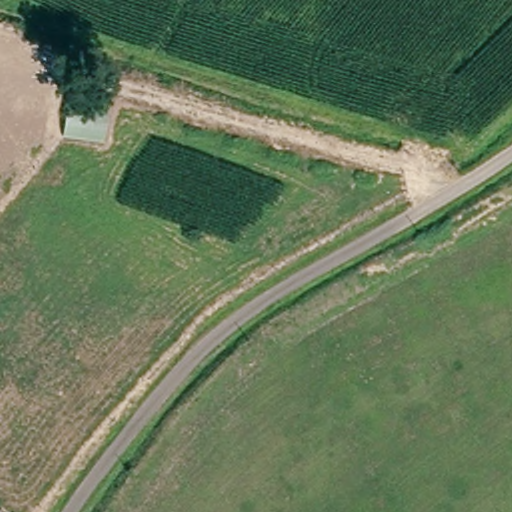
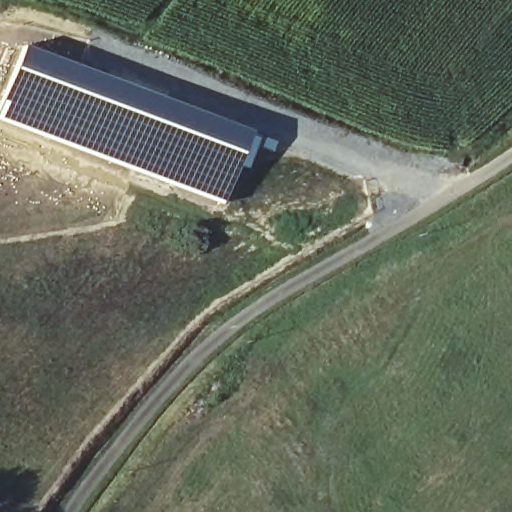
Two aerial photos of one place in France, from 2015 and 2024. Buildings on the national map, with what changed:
new [(219,118),(259,135),(249,159),(247,158),(245,161),(242,160),(222,203),(153,179),(0,119),(0,101),(23,43),(219,118)]

